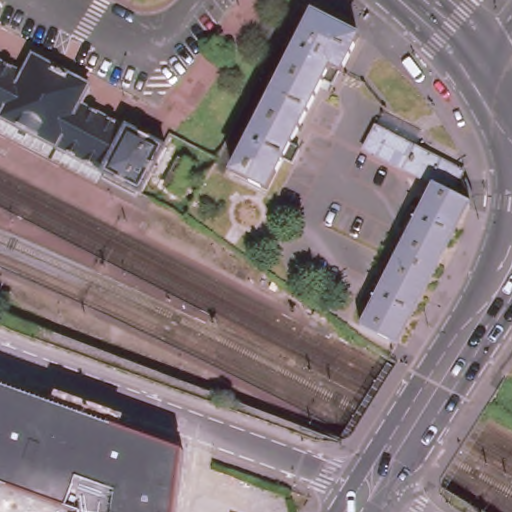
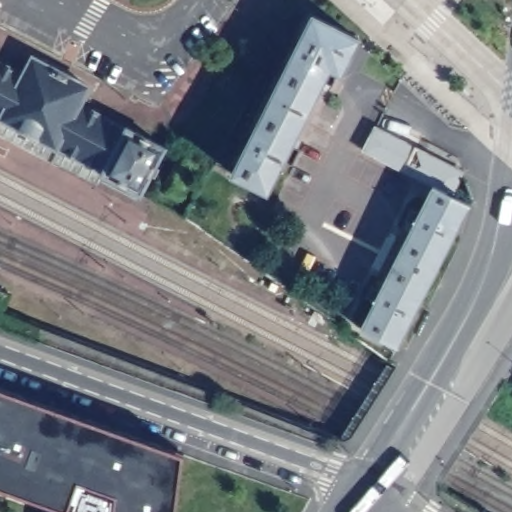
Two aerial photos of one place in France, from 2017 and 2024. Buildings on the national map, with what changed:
unchanged [(342,64),(331,59),(269,181),(234,164),(314,5),(360,29),(342,64)]
unchanged [(99,174),(79,160),(56,146),(0,117),(0,53),(22,65),(33,46),(94,80),(85,99),(126,118),(122,119),(142,126),(150,112),(165,123),(159,131),(170,144),(142,193),(99,174)]
unchanged [(447,190),(464,198),(392,341),(360,323),(430,181),(360,145),(372,123),(459,167),(447,190)]
unchanged [(175,152),(195,161),(177,192),(162,180),(175,152)]
unchanged [(0,388),(50,406),(57,395),(125,417),(120,430),(182,452),(174,512),(76,512),(0,485),(0,388)]

